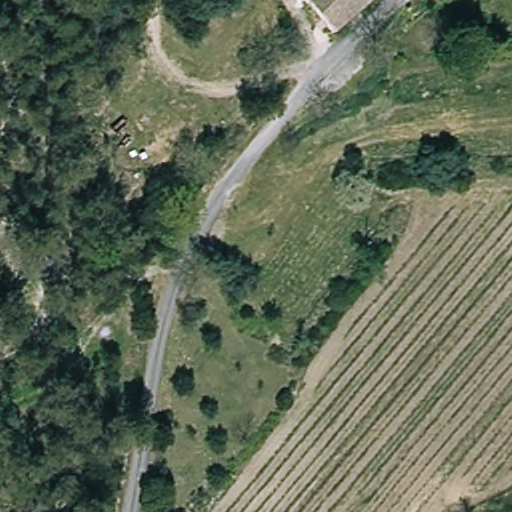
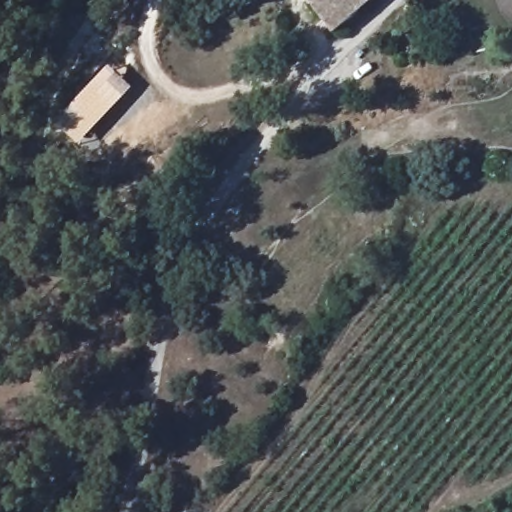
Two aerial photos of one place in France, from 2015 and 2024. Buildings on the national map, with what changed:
unchanged [(329,35),(302,0),(303,0),(367,0),(353,12),(329,35)]
new [(110,67),(133,91),(80,147),(57,126),(110,67)]

